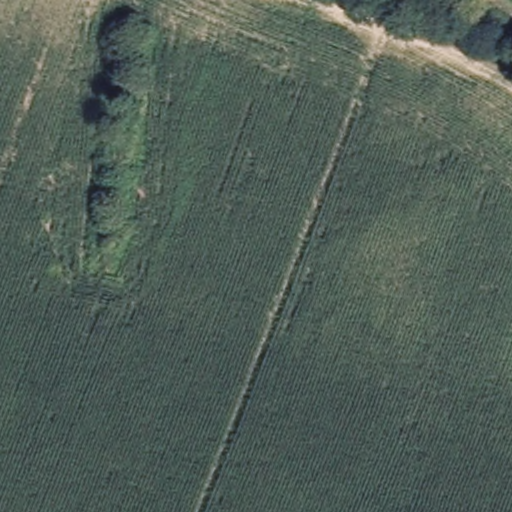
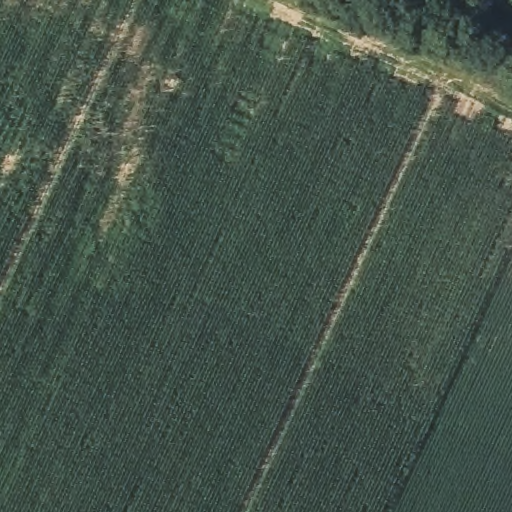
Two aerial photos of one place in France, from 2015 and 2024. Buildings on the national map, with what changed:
[]

